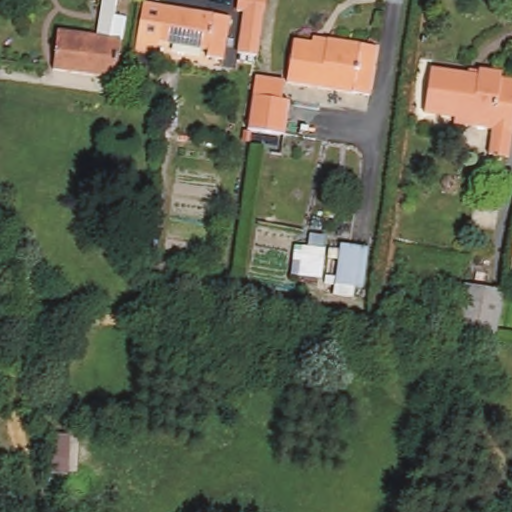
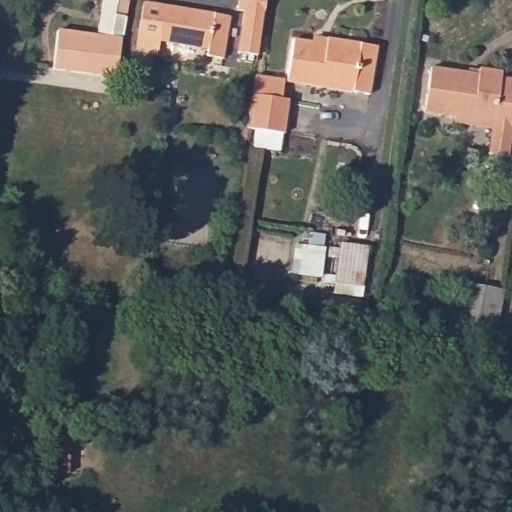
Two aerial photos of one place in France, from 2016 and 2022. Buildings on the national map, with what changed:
unchanged [(102,0),(129,0),(116,80),(53,70),(59,30),(96,36),(102,0)]
unchanged [(228,56),(211,54),(212,45),(163,38),(161,52),(140,48),(147,0),(157,0),(235,12),(228,56)]
unchanged [(246,11),(238,10),(239,0),(267,0),(259,56),(240,52),(246,11)]
unchanged [(310,35),(327,38),(376,47),(369,95),(288,81),(294,37),(310,40),(310,35)]
unchanged [(155,57),(152,80),(135,79),(139,54),(155,57)]
unchanged [(484,67),(508,71),(507,77),(512,78),(512,156),(491,152),(495,130),(457,124),(458,117),(428,112),(436,65),(482,72),(484,67)]
unchanged [(285,81),(282,98),(290,99),(285,132),(248,127),(256,76),(285,81)]
unchanged [(366,247),(362,287),(354,285),(352,297),(333,295),(339,244),(366,247)]
unchanged [(502,290),(494,340),(454,332),(463,283),(502,290)]

